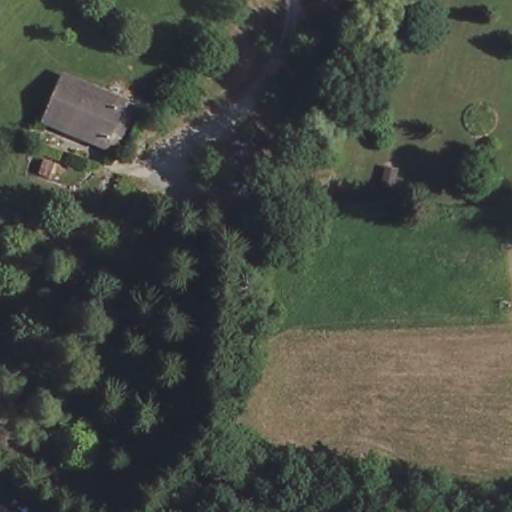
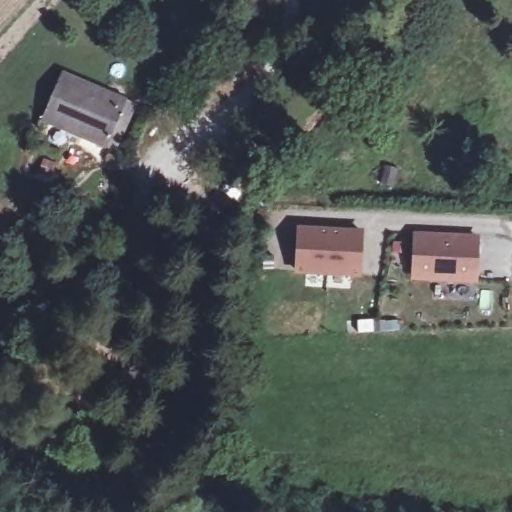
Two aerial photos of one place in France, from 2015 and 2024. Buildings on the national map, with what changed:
unchanged [(68,74),(137,102),(118,146),(50,117),(68,74)]
new [(290,230),(352,232),(351,275),(289,272),(290,230)]
new [(406,234),(469,237),(467,278),(405,276),(406,234)]

